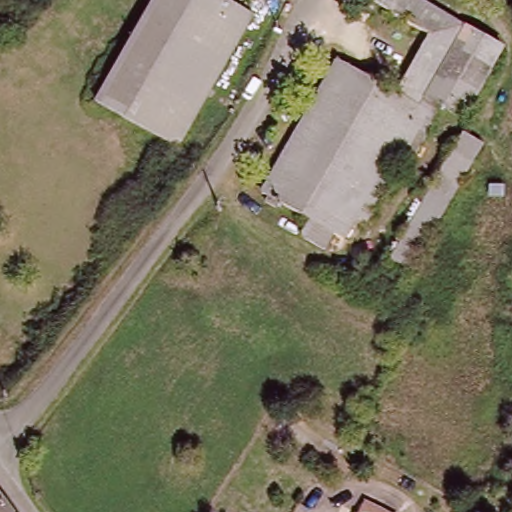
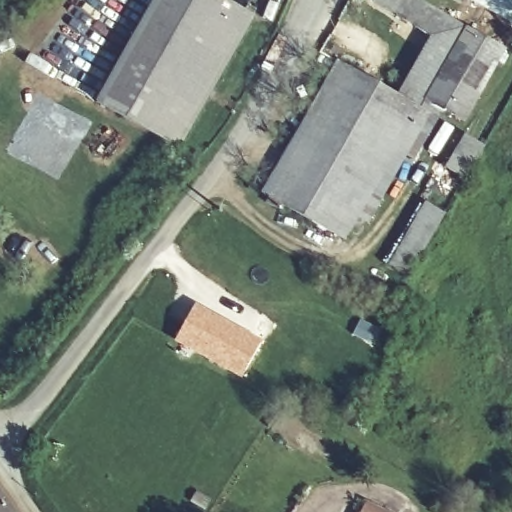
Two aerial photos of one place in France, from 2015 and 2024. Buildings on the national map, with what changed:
unchanged [(148,0),(220,0),(249,13),(186,150),(98,110),(148,0)]
unchanged [(419,36),(361,11),(365,0),(427,0),(507,35),(480,102),(404,70),(419,36)]
unchanged [(393,94),(404,70),(480,102),(475,109),(450,99),(438,127),(435,126),(389,220),(373,212),(359,238),(351,234),(338,256),(315,242),(323,229),(271,202),(334,66),(393,94)]
unchanged [(451,160),(464,129),(482,137),(418,279),(396,270),(386,266),(439,155),(442,156),(451,160)]
new [(195,304),(262,341),(242,378),(175,342),(195,304)]
unchanged [(9,512),(0,512),(0,499),(9,512)]
unchanged [(378,512),(356,512),(360,504),(378,512)]

